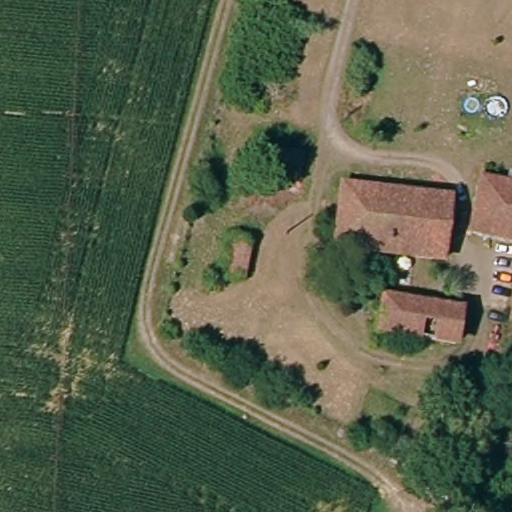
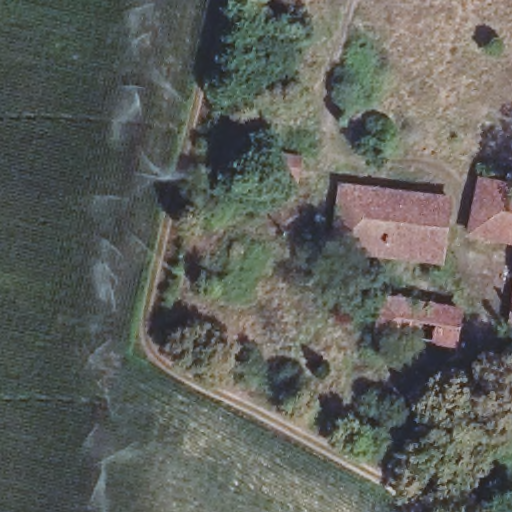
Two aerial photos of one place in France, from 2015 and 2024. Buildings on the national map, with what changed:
unchanged [(477,180),(512,186),(512,211),(473,205),(477,180)]
unchanged [(445,200),(438,262),(380,255),(382,243),(336,237),(342,187),(445,200)]
unchanged [(467,237),(473,205),(512,211),(512,243),(467,237)]
unchanged [(243,246),(233,280),(214,274),(225,240),(243,246)]
unchanged [(461,310),(456,345),(378,333),(383,299),(461,310)]
unchanged [(508,326),(512,306),(512,327),(508,326)]

